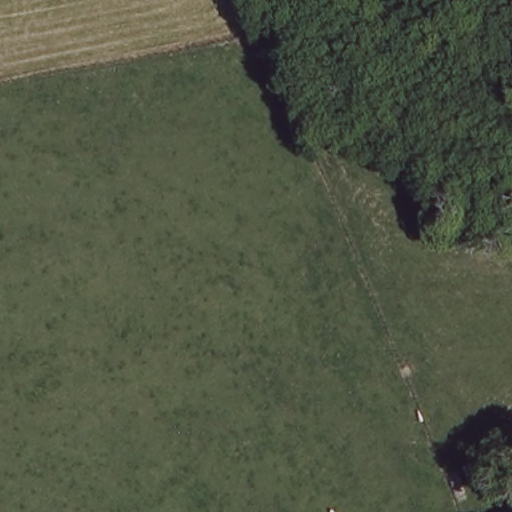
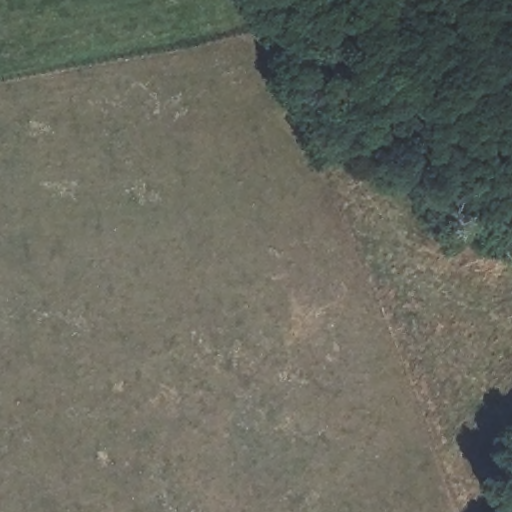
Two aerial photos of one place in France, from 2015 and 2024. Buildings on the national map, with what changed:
[]

